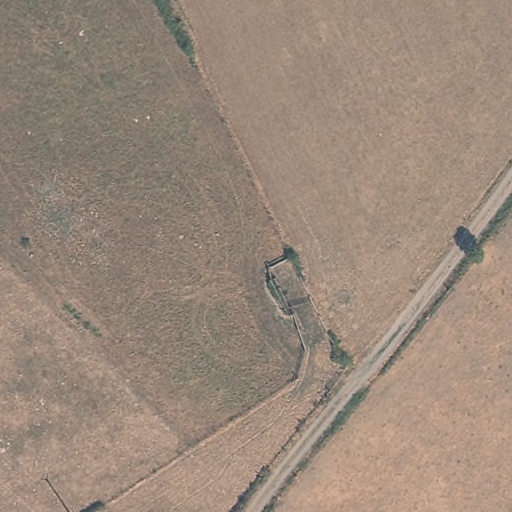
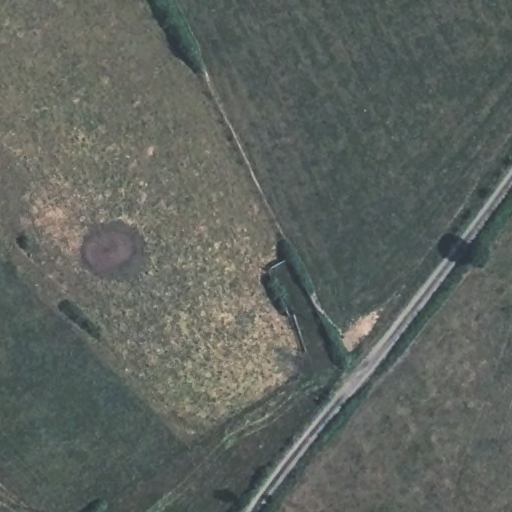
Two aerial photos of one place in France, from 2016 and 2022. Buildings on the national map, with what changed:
[]

